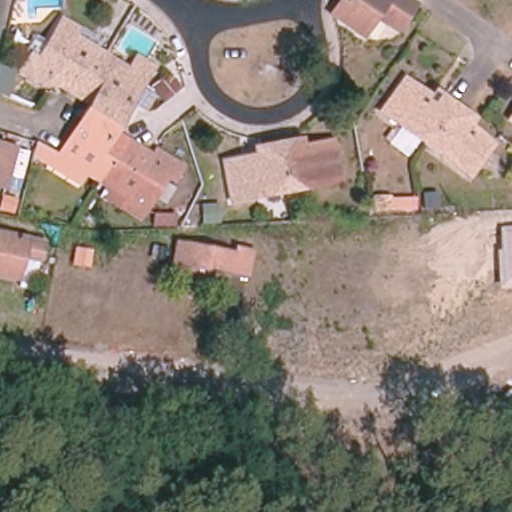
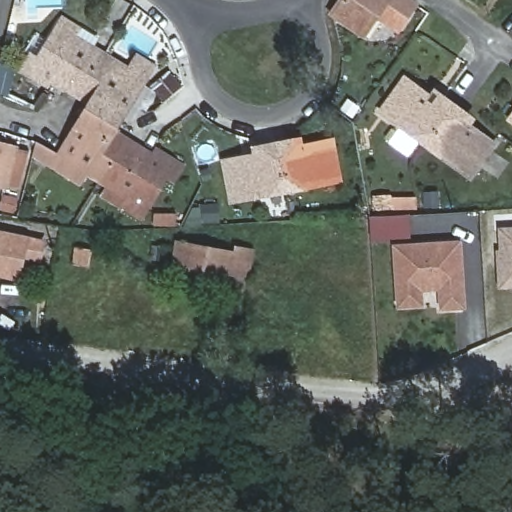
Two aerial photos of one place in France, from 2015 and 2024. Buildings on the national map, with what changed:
unchanged [(414,4),(396,29),(376,15),(363,35),(330,13),(340,0),(408,0),(414,4)]
unchanged [(68,89),(64,86),(68,80),(55,72),(48,84),(22,69),(29,56),(32,52),(29,50),(36,37),(47,44),(62,19),(80,30),(81,28),(95,37),(90,45),(103,53),(78,95),(68,89)]
unchanged [(86,109),(89,102),(78,95),(103,53),(129,69),(136,57),(150,65),(144,77),(114,126),(86,109)]
unchanged [(177,83),(160,95),(152,85),(169,72),(177,83)]
unchanged [(391,143),(402,128),(380,112),(404,80),(434,102),(439,96),(443,99),(452,105),(424,144),(417,139),(406,154),(391,143)]
unchanged [(468,177),(424,144),(452,105),(459,111),(466,116),(462,122),(492,144),(468,177)]
unchanged [(53,166),(59,155),(86,109),(114,126),(110,132),(123,140),(99,180),(86,172),(80,182),(53,166)]
unchanged [(509,120),(512,116),(512,122),(509,120)]
unchanged [(173,180),(165,176),(140,217),(115,202),(121,193),(99,180),(123,140),(136,148),(141,141),(146,145),(155,150),(182,165),(173,180)]
unchanged [(43,160),(33,153),(35,143),(49,150),(43,160)]
unchanged [(3,186),(0,186),(0,145),(13,148),(28,152),(18,190),(3,186)]
unchanged [(337,185),(284,195),(275,149),(292,145),(293,153),(329,146),(337,185)]
unchanged [(284,195),(230,205),(223,166),(259,159),(258,152),(275,149),(284,195)]
unchanged [(391,210),(374,211),(373,195),(390,195),(391,210)]
unchanged [(13,214),(0,212),(4,200),(15,202),(13,214)]
unchanged [(175,224),(153,223),(154,213),(175,213),(175,224)]
new [(412,238),(369,240),(369,216),(411,214),(412,238)]
unchanged [(498,288),(496,249),(499,249),(498,227),(512,226),(512,288),(498,288)]
demolished [(447,331),(397,331),(397,312),(392,312),(392,285),(396,285),(405,285),(405,250),(405,249),(405,229),(447,229),(447,331)]
unchanged [(29,260),(24,283),(0,278),(0,236),(48,246),(44,264),(29,260)]
new [(439,309),(439,291),(423,292),(424,306),(397,307),(394,244),(463,239),(467,308),(439,309)]
unchanged [(253,281),(179,267),(183,246),(240,257),(241,252),(257,255),(253,281)]
unchanged [(170,266),(156,263),(159,251),(173,254),(170,266)]

